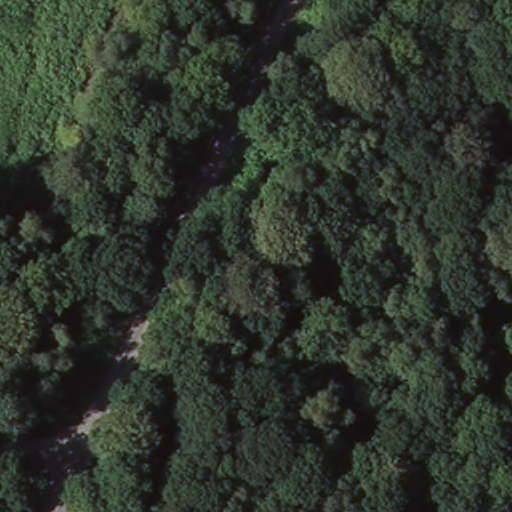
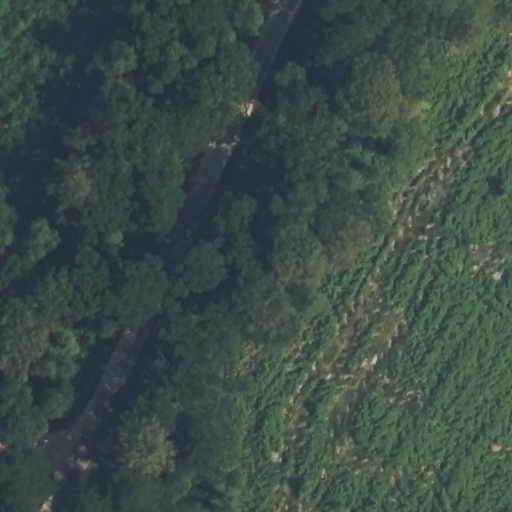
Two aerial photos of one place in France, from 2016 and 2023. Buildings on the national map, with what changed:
[]

